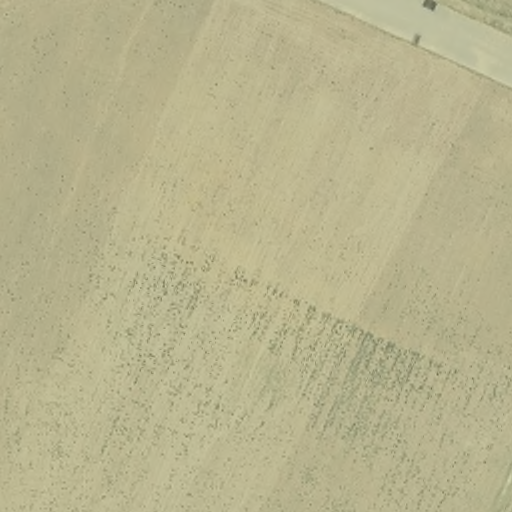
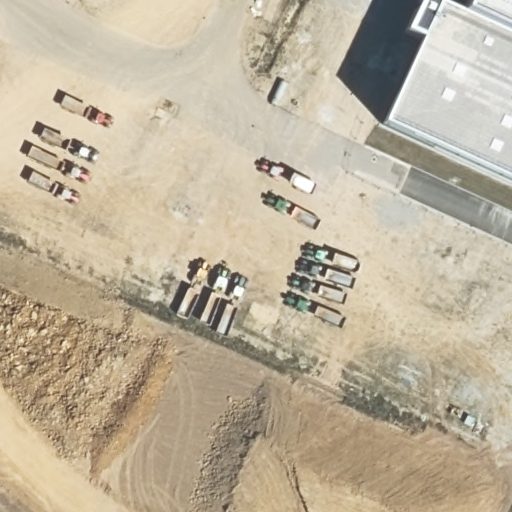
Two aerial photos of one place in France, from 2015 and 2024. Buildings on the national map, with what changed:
new [(385,125),(439,0),(465,0),(474,5),(476,0),(512,0),(512,181),(385,125)]

